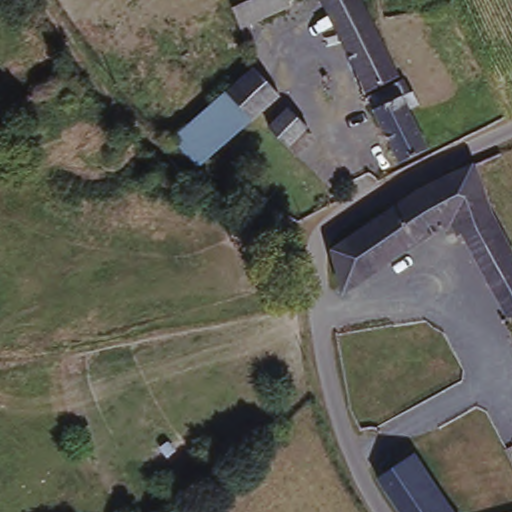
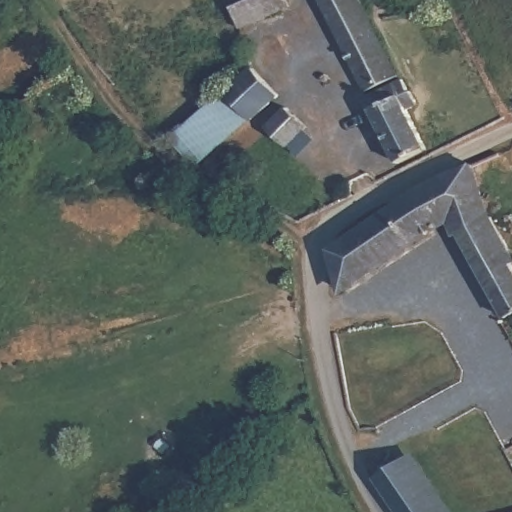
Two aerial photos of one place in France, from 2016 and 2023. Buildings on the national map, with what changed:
unchanged [(288,0),(293,10),(242,30),(234,9),(230,5),(243,0),(288,0)]
unchanged [(387,70),(358,85),(318,0),(354,0),(363,19),(387,70)]
unchanged [(248,122),(219,99),(248,69),(276,100),(248,122)]
unchanged [(402,77),(413,105),(403,110),(420,150),(393,164),(362,95),(402,77)]
unchanged [(248,122),(250,124),(198,169),(170,142),(219,99),(248,122)]
unchanged [(292,112),(311,131),(291,152),(269,132),(292,112)]
unchanged [(471,159),(512,256),(512,319),(502,324),(448,226),(344,295),(326,251),(471,159)]
unchanged [(418,450),(448,488),(442,496),(454,512),(440,512),(402,460),(418,450)]
unchanged [(402,460),(440,512),(396,512),(374,480),(378,476),(402,460)]

